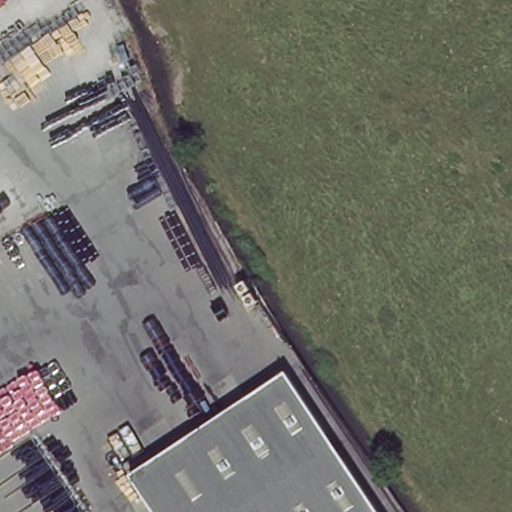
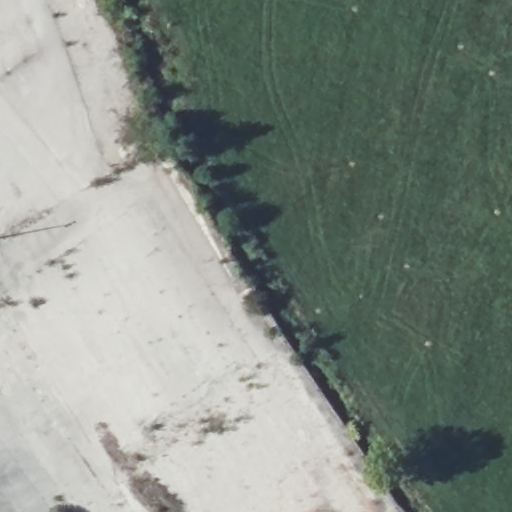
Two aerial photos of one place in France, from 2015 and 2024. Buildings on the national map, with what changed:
demolished [(125,473),(286,367),(381,512),(152,512),(125,473)]

